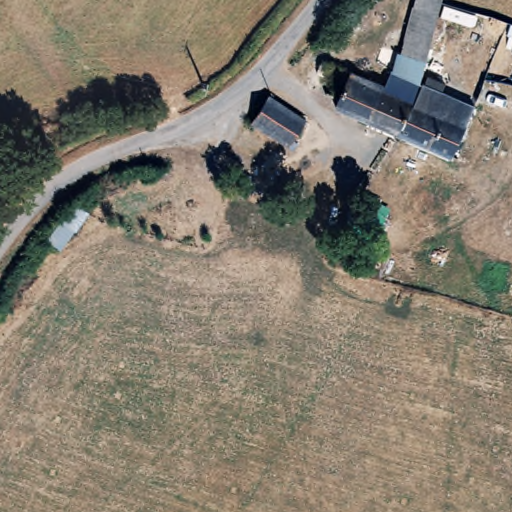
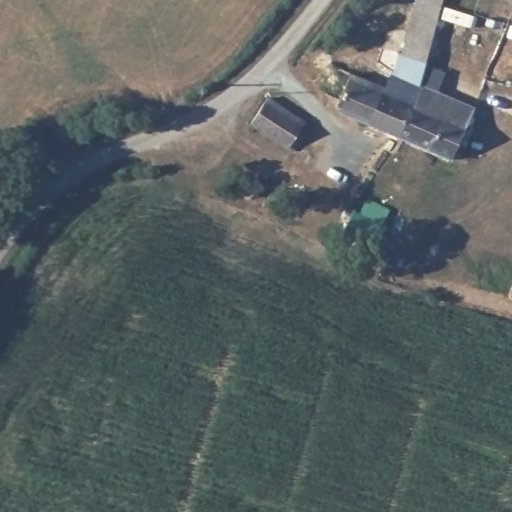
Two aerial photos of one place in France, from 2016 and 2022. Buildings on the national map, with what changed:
unchanged [(427,63),(405,57),(420,0),(424,0),(443,5),(427,63)]
unchanged [(381,92),(365,125),(333,110),(336,105),(306,91),(318,62),(381,92)]
unchanged [(416,89),(418,91),(395,140),(365,125),(381,92),(388,76),(416,89)]
unchanged [(473,117),(467,130),(482,138),(466,173),(395,140),(418,91),(473,117)]
unchanged [(294,115),(318,132),(299,159),(247,123),(267,96),(294,115)]

